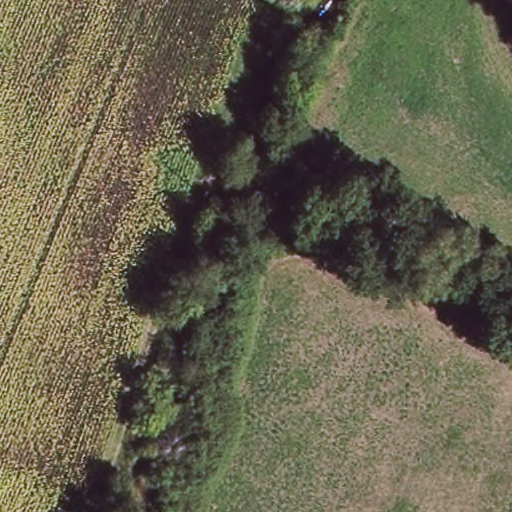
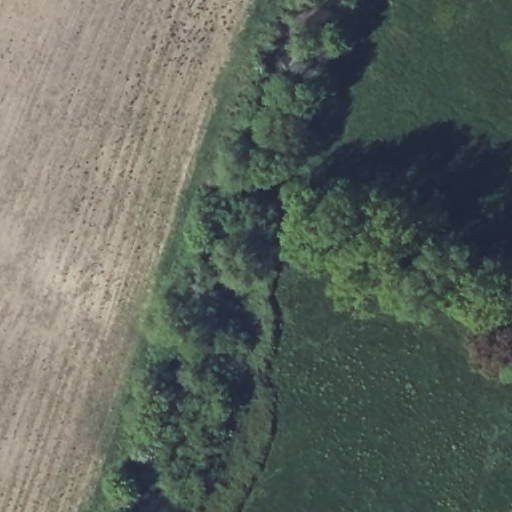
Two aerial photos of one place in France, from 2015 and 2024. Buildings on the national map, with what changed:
[]

